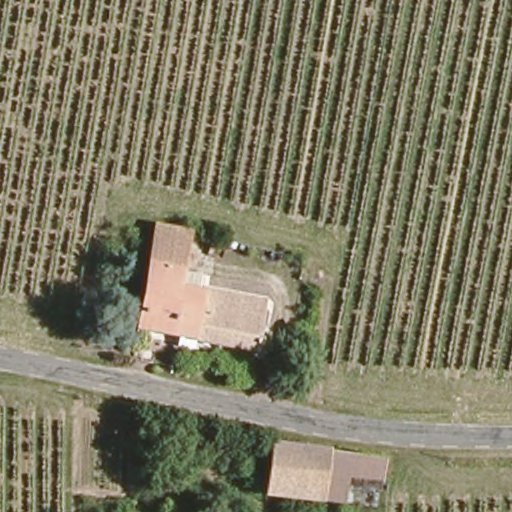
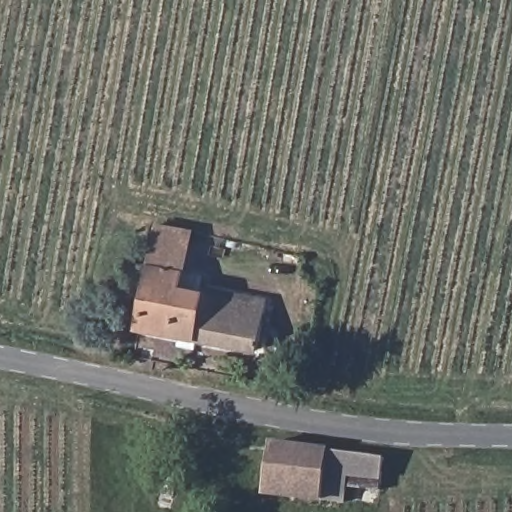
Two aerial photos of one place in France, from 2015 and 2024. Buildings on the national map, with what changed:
unchanged [(255,345),(138,321),(147,256),(154,219),(186,224),(180,264),(201,269),(199,285),(263,297),(255,345)]
unchanged [(341,485),(340,500),(265,490),(273,441),(385,457),(383,480),(387,480),(387,488),(383,487),(341,485)]

